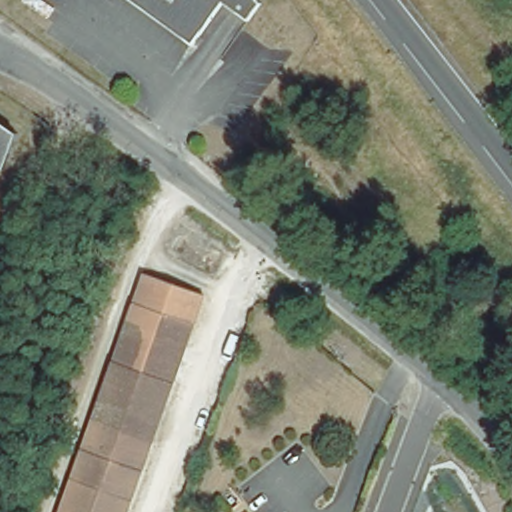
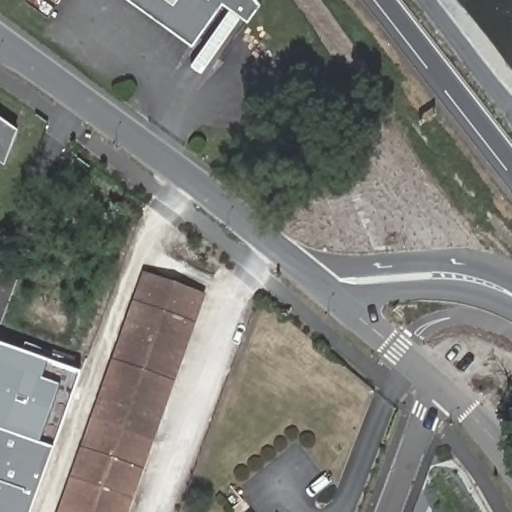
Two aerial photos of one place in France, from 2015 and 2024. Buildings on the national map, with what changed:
unchanged [(128,0),(219,0),(188,43),(128,0)]
unchanged [(219,0),(256,0),(243,17),(219,0)]
unchanged [(12,132),(0,165),(0,123),(2,124),(12,132)]
unchanged [(94,422),(147,275),(174,285),(204,295),(151,442),(127,512),(63,512),(94,422)]
new [(32,512),(0,512),(0,350),(77,377),(32,512)]

